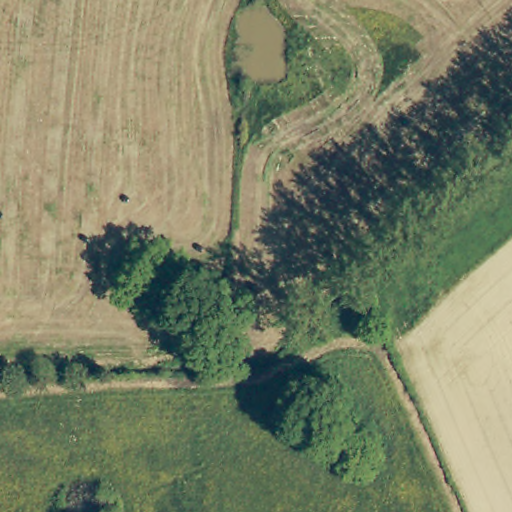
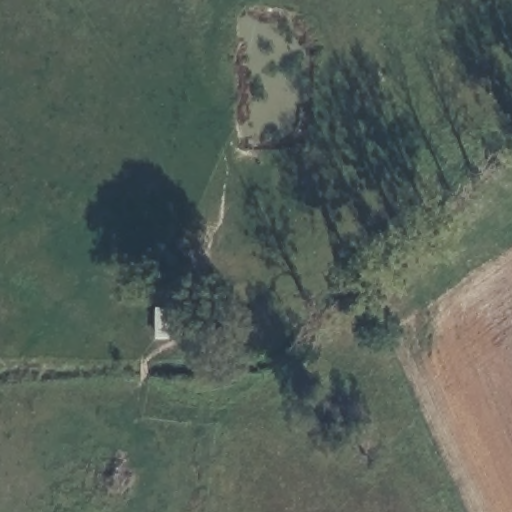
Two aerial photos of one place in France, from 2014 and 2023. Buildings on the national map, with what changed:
[]

